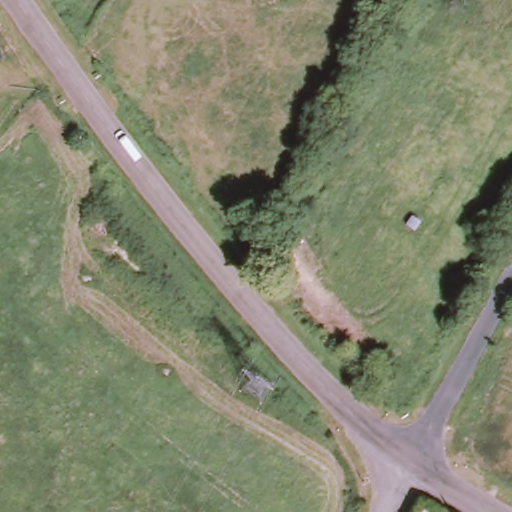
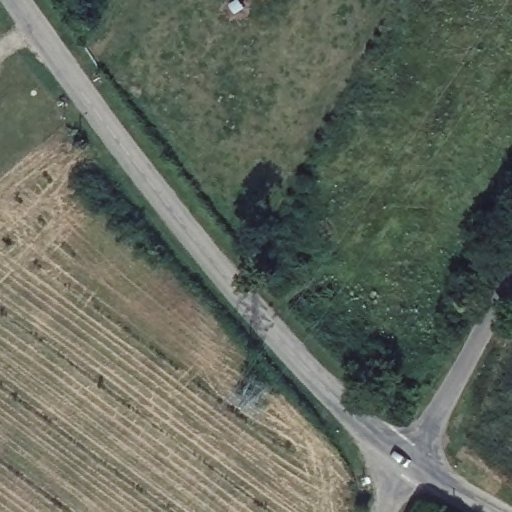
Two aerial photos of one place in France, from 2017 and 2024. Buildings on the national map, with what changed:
unchanged [(278,226),(299,236),(279,276),(258,265),(278,226)]

